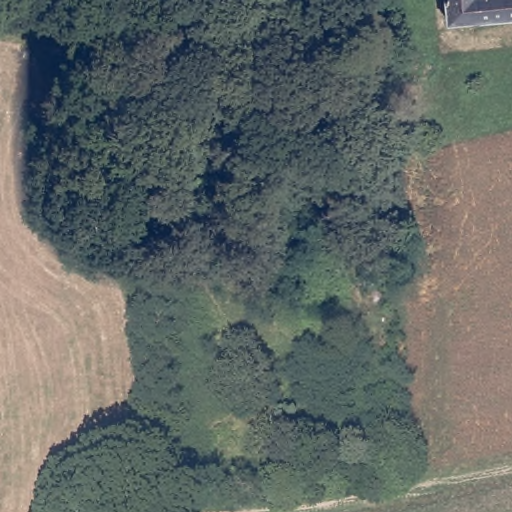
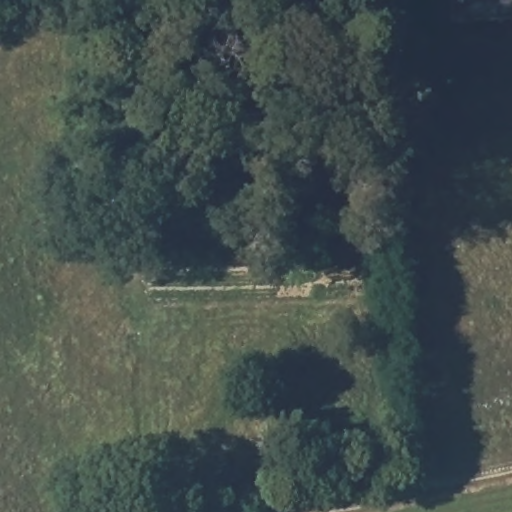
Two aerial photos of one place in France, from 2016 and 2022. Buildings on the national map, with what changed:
unchanged [(449,0),(512,0),(512,15),(450,17),(449,0)]

